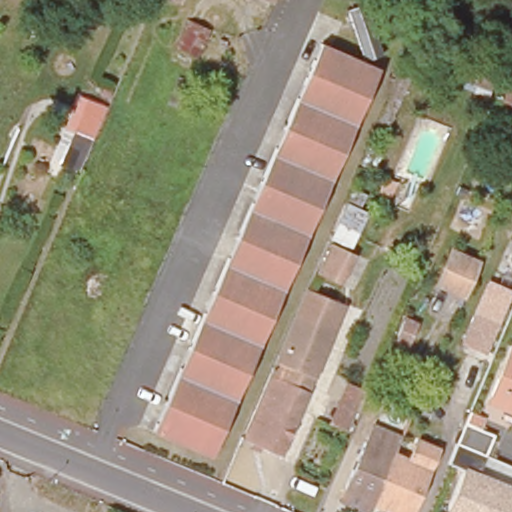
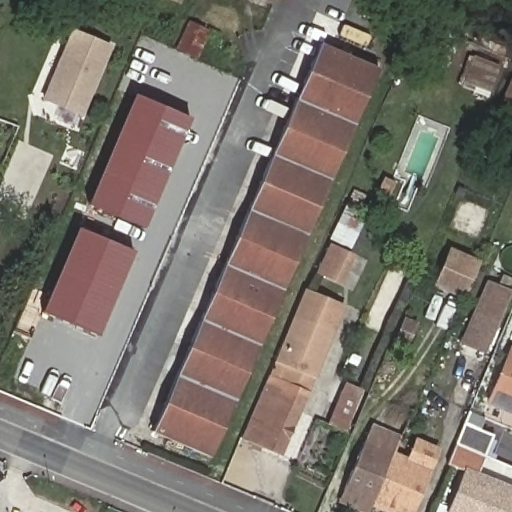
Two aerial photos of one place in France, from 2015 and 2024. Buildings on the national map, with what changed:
unchanged [(182,29),(205,39),(193,67),(171,58),(182,29)]
new [(73,31),(110,46),(81,115),(44,99),(51,84),(54,77),(73,31)]
demolished [(240,87),(214,76),(230,36),(257,48),(240,87)]
unchanged [(320,46),(378,71),(211,459),(153,432),(320,46)]
unchanged [(470,64),(498,75),(488,99),(458,86),(470,64)]
unchanged [(511,76),(512,77),(512,107),(499,103),(511,76)]
new [(133,94),(189,118),(143,229),(87,204),(133,94)]
demolished [(104,119),(80,173),(59,164),(83,109),(104,119)]
new [(77,228),(134,251),(98,335),(41,313),(77,228)]
unchanged [(319,240),(354,255),(341,284),(307,270),(319,240)]
unchanged [(478,263),(464,296),(437,284),(451,252),(478,263)]
unchanged [(483,348),(461,338),(484,283),(506,294),(483,348)]
unchanged [(344,306),(281,459),(245,444),(308,292),(344,306)]
unchanged [(512,339),(512,353),(507,351),(512,339)]
unchanged [(502,411),(484,404),(495,378),(512,385),(512,403),(506,401),(502,411)]
unchanged [(342,380),(360,388),(343,432),(324,424),(342,380)]
unchanged [(453,443),(465,416),(469,408),(483,413),(476,428),(491,434),(483,454),(453,443)]
unchanged [(344,474),(356,479),(365,458),(356,454),(364,437),(412,456),(416,450),(436,459),(414,512),(367,512),(334,498),(344,474)]
unchanged [(512,512),(444,512),(462,466),(512,484),(512,512)]

